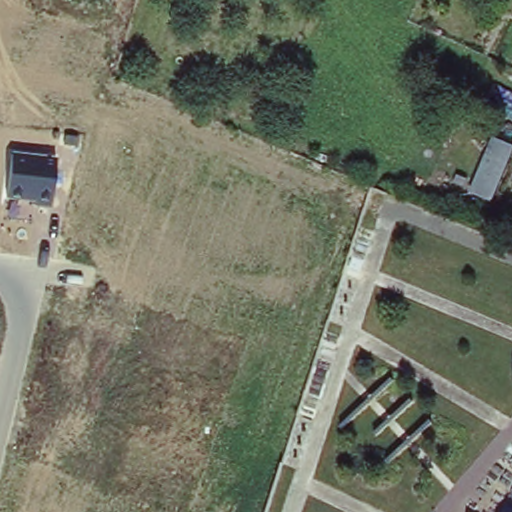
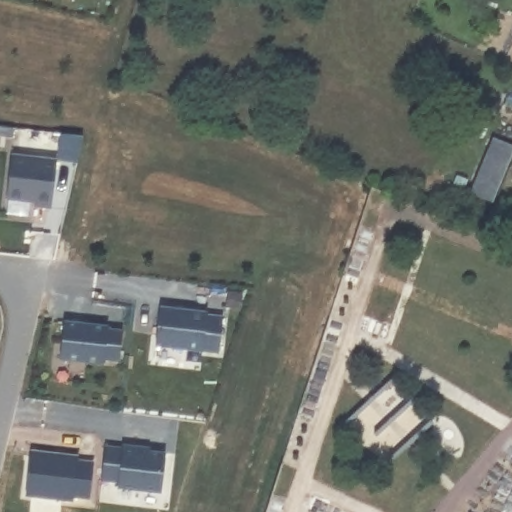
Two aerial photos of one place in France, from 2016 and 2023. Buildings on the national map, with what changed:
unchanged [(512,163),(494,200),(472,187),(494,136),(512,144),(512,163)]
unchanged [(12,155),(56,159),(51,209),(34,208),(35,201),(7,199),(12,155)]
new [(218,351),(155,344),(159,307),(206,312),(206,315),(222,317),(218,351)]
new [(107,325),(107,330),(122,332),(119,361),(104,360),(103,365),(60,360),(64,321),(107,325)]
new [(160,493),(117,488),(117,482),(101,480),(105,445),(122,447),(122,444),(139,446),(139,450),(165,452),(160,493)]
new [(77,456),(77,460),(92,463),(89,500),(73,498),(72,502),(26,496),(31,450),(77,456)]

